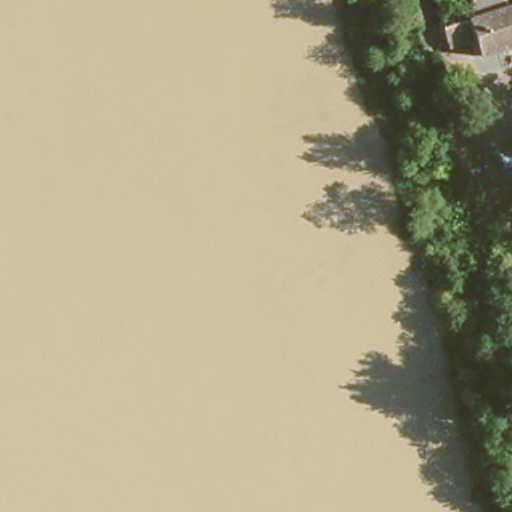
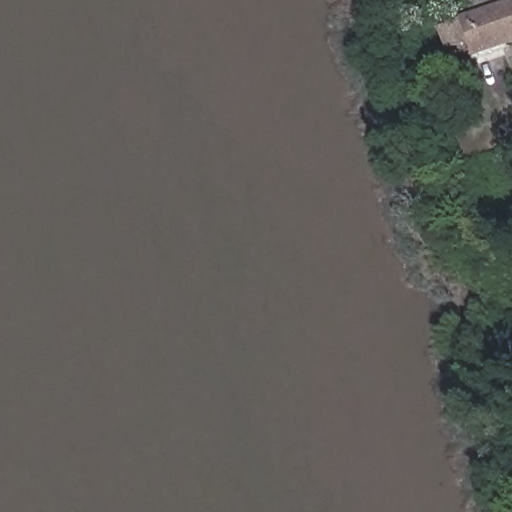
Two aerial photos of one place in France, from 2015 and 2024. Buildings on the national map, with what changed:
unchanged [(499,7),(497,0),(512,0),(512,50),(478,62),(472,47),(449,53),(439,28),(464,19),(499,7)]

